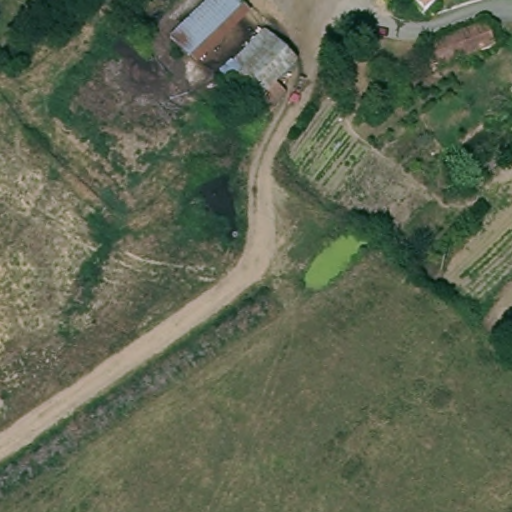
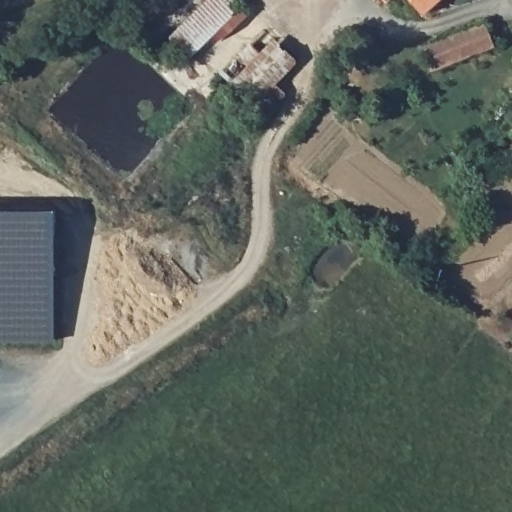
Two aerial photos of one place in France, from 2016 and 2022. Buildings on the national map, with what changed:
unchanged [(174,34),(204,0),(240,0),(196,50),(174,34)]
unchanged [(384,7),(379,0),(392,0),(384,7)]
unchanged [(417,12),(408,0),(432,0),(417,12)]
unchanged [(423,52),(488,20),(500,47),(472,61),(436,79),(434,75),(423,52)]
unchanged [(258,32),(292,60),(271,86),(286,96),(271,116),(219,78),(258,32)]
new [(54,340),(0,339),(0,206),(55,206),(54,340)]

